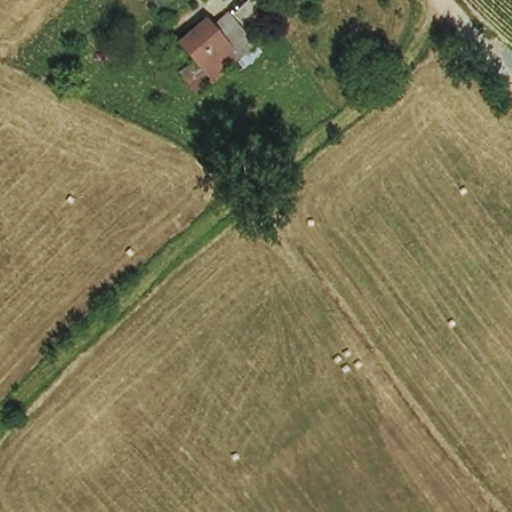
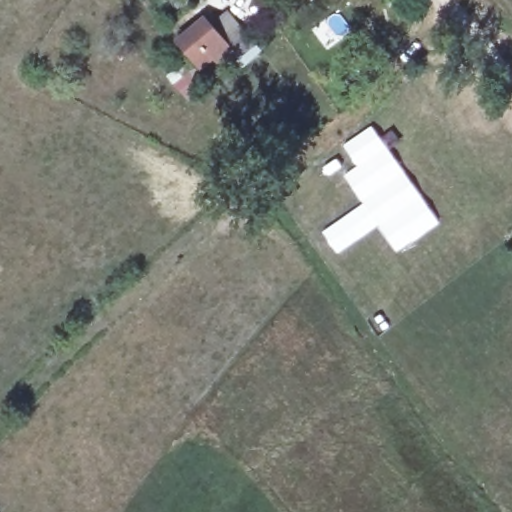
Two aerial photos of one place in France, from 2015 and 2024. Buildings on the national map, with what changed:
unchanged [(174,38),(198,19),(206,28),(214,22),(240,55),(223,70),(217,76),(209,68),(202,74),(174,38)]
new [(372,125),(381,137),(392,129),(399,140),(389,147),(441,223),(396,253),(377,226),(362,202),(343,175),(355,165),(342,145),(372,125)]
new [(362,202),(377,226),(337,255),(321,232),(362,202)]

